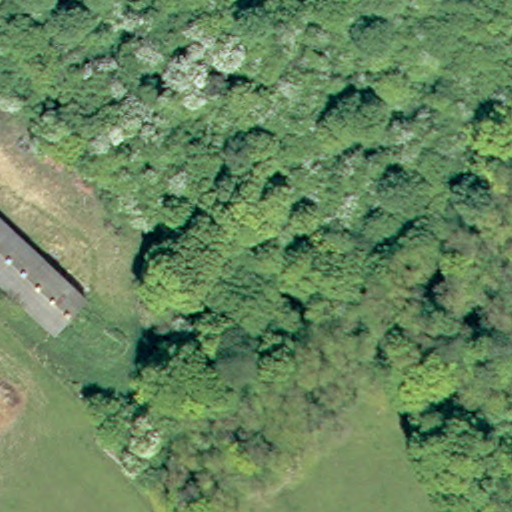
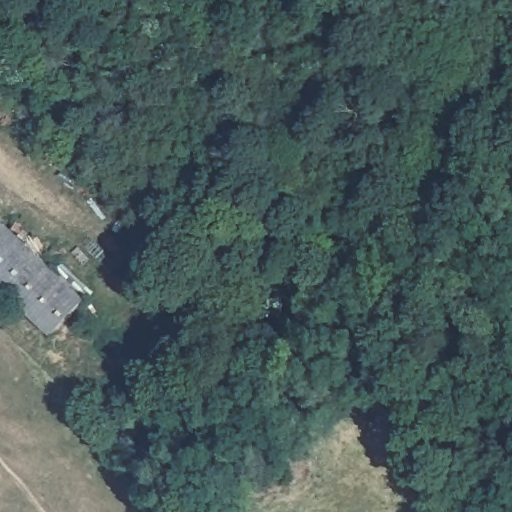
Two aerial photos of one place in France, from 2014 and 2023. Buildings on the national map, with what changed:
unchanged [(96,288),(70,326),(0,275),(0,218),(96,288)]

